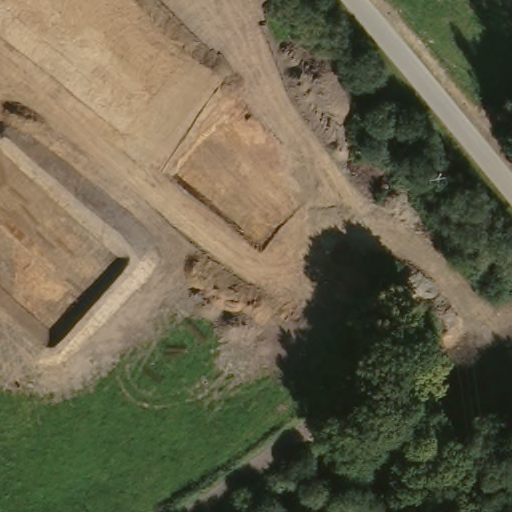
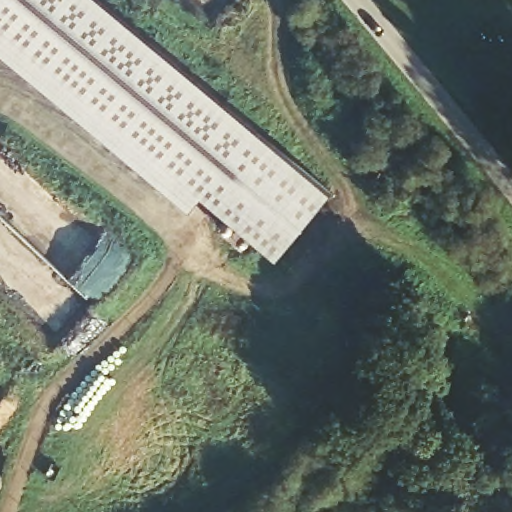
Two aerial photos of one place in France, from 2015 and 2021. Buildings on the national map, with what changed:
new [(333,193),(277,260),(201,197),(190,212),(0,55),(0,0),(100,0),(333,193)]

